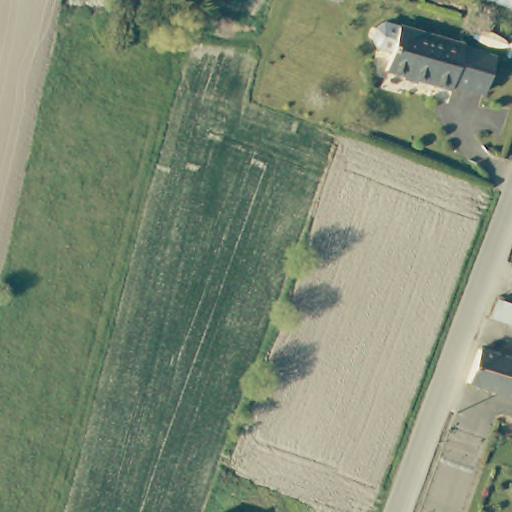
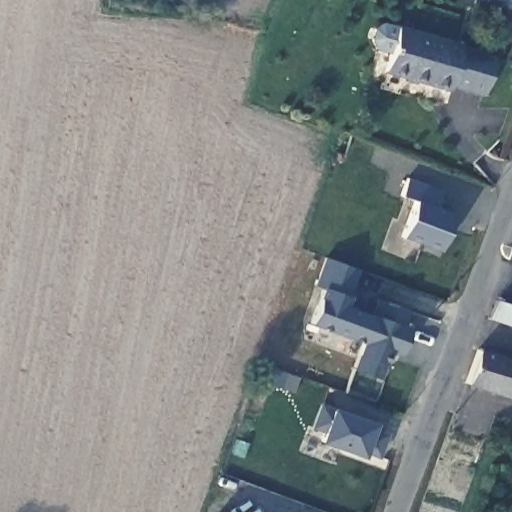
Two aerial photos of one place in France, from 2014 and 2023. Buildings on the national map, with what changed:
unchanged [(481,2),(481,1),(482,0),(512,0),(512,14),(503,11),(481,2)]
unchanged [(452,93),(408,81),(392,76),(405,32),(420,37),(465,52),(452,93)]
unchanged [(493,62),(484,92),(458,86),(456,95),(452,93),(465,52),(493,62)]
new [(399,236),(414,198),(401,194),(408,178),(441,190),(436,205),(453,212),(438,250),(399,236)]
new [(347,306),(370,314),(377,299),(409,310),(402,323),(409,327),(401,356),(388,351),(379,377),(351,368),(360,342),(308,324),(322,287),(316,285),(326,257),(358,270),(347,306)]
unchanged [(505,297),(512,300),(512,328),(496,322),(505,297)]
unchanged [(512,341),(512,388),(509,396),(472,386),(492,333),(512,341)]
unchanged [(512,396),(509,396),(512,388),(512,396)]
new [(379,458),(365,451),(363,458),(318,443),(331,407),(377,423),(375,428),(387,433),(379,458)]

